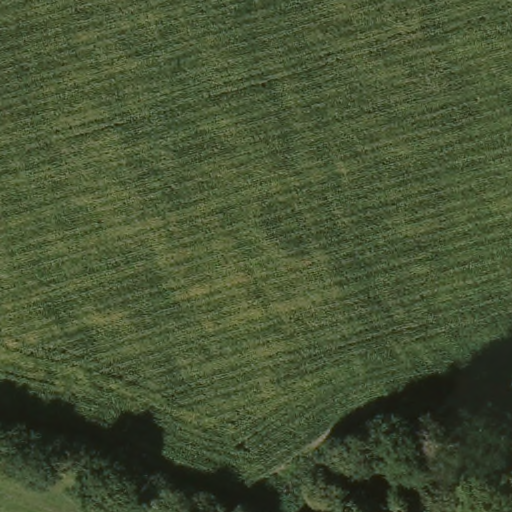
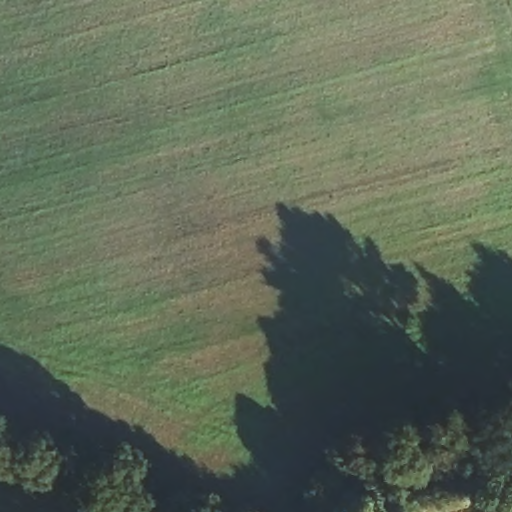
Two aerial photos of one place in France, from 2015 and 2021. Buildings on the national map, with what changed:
[]

